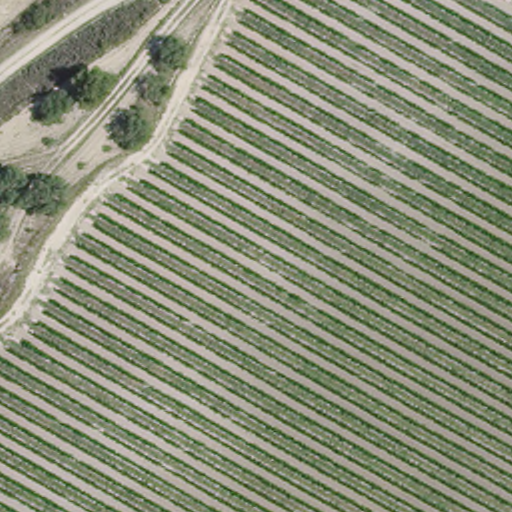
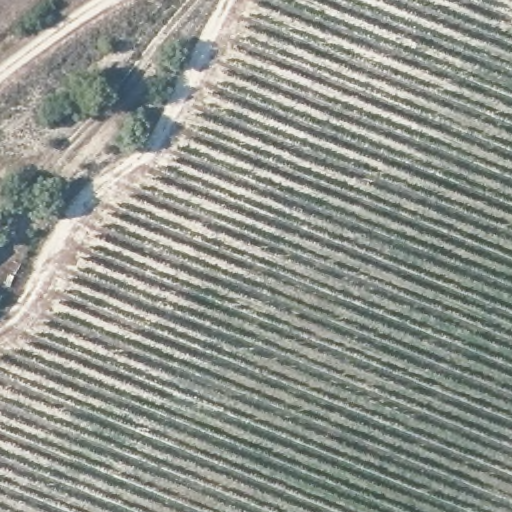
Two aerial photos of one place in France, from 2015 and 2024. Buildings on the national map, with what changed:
[]

